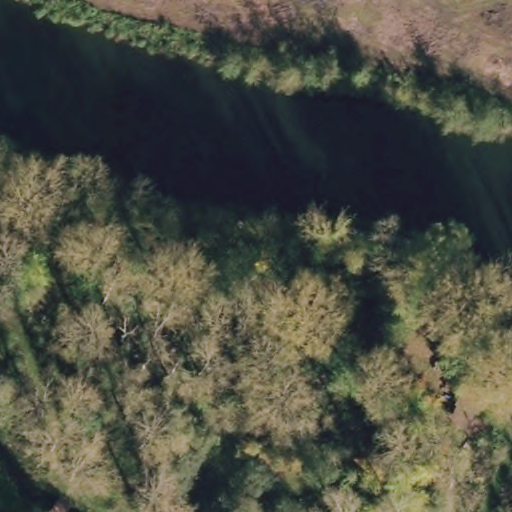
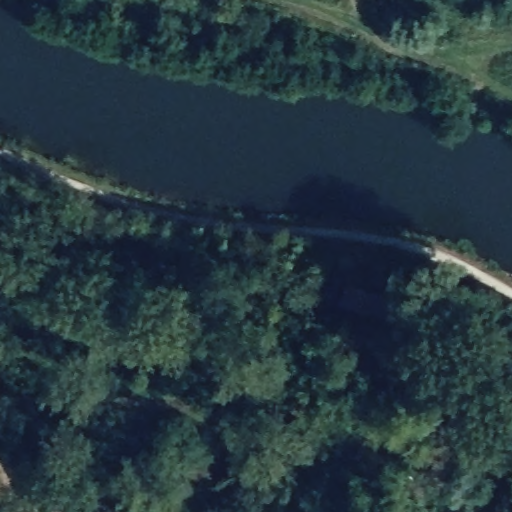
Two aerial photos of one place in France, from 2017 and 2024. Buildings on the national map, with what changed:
[]

